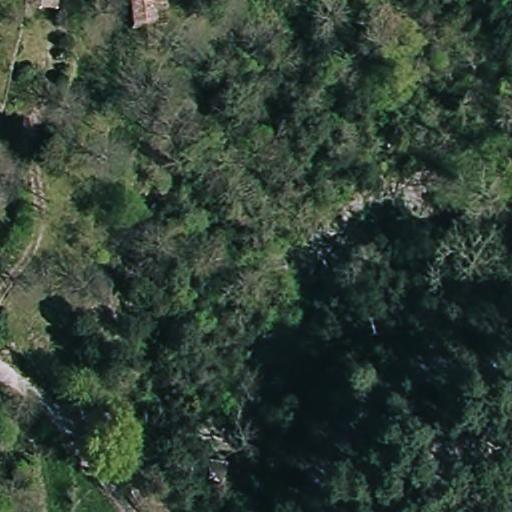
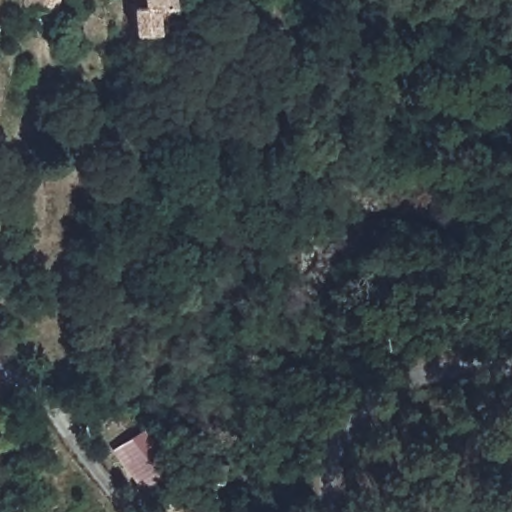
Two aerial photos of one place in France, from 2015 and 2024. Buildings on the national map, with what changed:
unchanged [(54,8),(22,5),(23,0),(55,0),(54,8)]
unchanged [(164,24),(158,25),(160,41),(147,42),(146,27),(129,30),(124,0),(161,0),(164,24)]
unchanged [(85,416),(97,407),(112,425),(119,433),(108,442),(101,435),(85,416)]
new [(139,430),(166,465),(140,486),(123,464),(128,460),(118,446),(139,430)]

